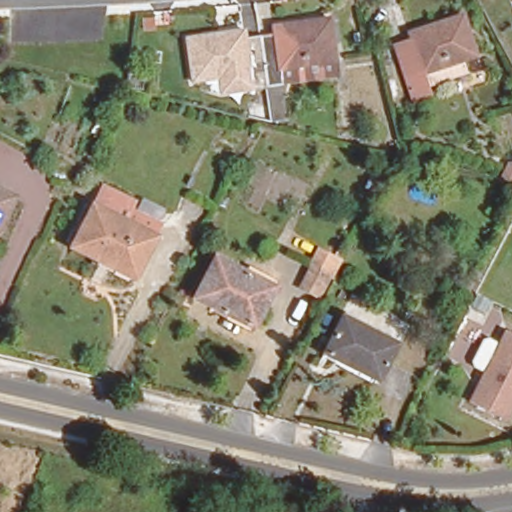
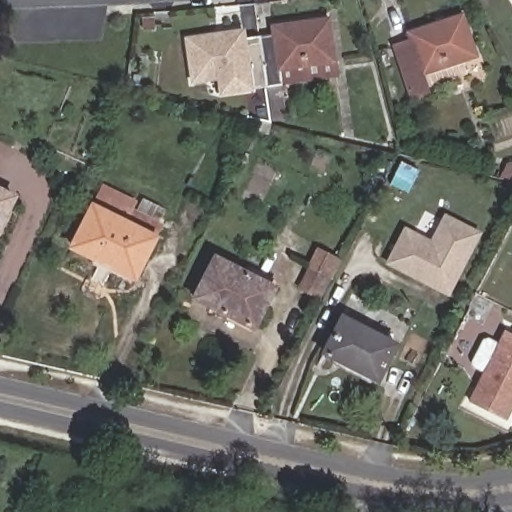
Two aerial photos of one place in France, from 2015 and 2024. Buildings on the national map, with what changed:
unchanged [(425,83),(427,87),(411,93),(393,39),(410,34),(408,27),(461,9),(474,49),(460,54),(465,70),(425,83)]
unchanged [(281,84),(286,117),(272,119),(267,86),(260,36),(273,33),(272,26),(327,18),(333,60),(336,76),(281,84)]
unchanged [(251,88),(249,72),(194,80),(186,38),(241,31),(242,38),(260,36),(267,86),(251,88)]
unchanged [(512,168),(512,182),(506,180),(512,168)]
unchanged [(102,184),(126,197),(123,203),(162,222),(133,278),(70,246),(102,184)]
unchanged [(14,196),(0,224),(0,189),(14,196)]
new [(444,212),(482,232),(449,297),(384,263),(404,225),(430,239),(444,212)]
unchanged [(214,257),(272,286),(252,327),(194,297),(214,257)]
unchanged [(325,277),(315,297),(297,288),(308,268),(325,277)]
unchanged [(341,317),(395,344),(377,380),(323,352),(341,317)]
unchanged [(466,406),(481,377),(470,371),(468,367),(480,345),(485,344),(495,350),(503,336),(512,340),(512,400),(500,423),(466,406)]

